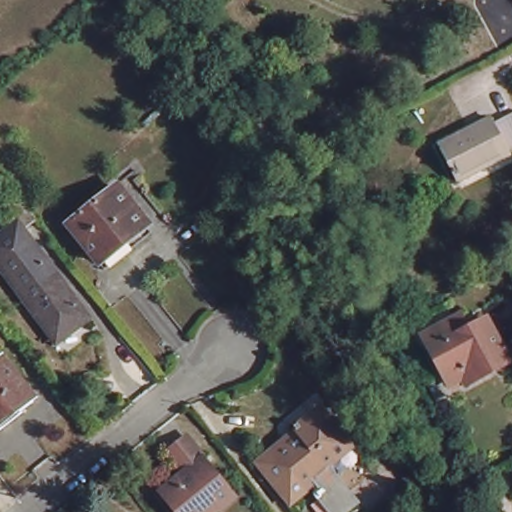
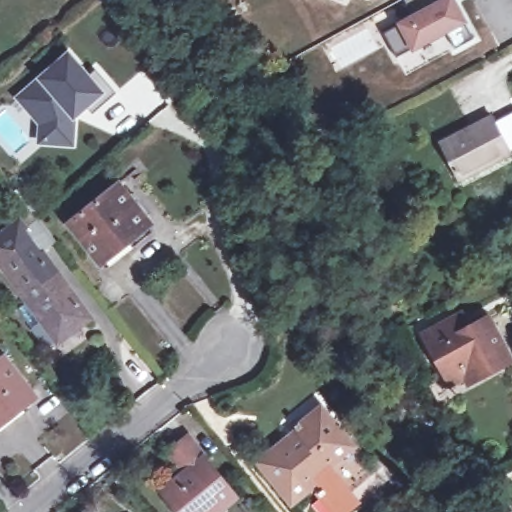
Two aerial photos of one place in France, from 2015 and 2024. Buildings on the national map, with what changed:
new [(404,0),(453,0),(474,40),(455,50),(446,32),(396,59),(383,34),(413,17),(404,0)]
new [(446,32),(455,50),(406,76),(396,59),(446,32)]
new [(65,56),(85,77),(93,71),(115,95),(90,116),(83,107),(71,118),(70,146),(38,144),(35,144),(35,127),(13,103),(25,92),(65,56)]
unchanged [(511,162),(461,188),(441,150),(492,122),(495,129),(512,120),(512,157),(510,159),(511,162)]
unchanged [(119,182),(156,229),(110,267),(72,221),(119,182)]
unchanged [(6,200),(18,191),(42,220),(30,231),(94,320),(62,343),(12,275),(0,257),(0,241),(23,224),(6,200)]
unchanged [(458,392),(454,385),(440,358),(432,345),(465,327),(474,322),(482,336),(498,327),(512,353),(512,375),(483,390),(476,393),(472,385),(458,392)]
unchanged [(0,433),(0,357),(2,360),(31,398),(18,409),(22,415),(0,433)]
unchanged [(305,422),(308,426),(325,412),(373,475),(350,493),(358,503),(347,512),(332,512),(318,495),(323,491),(317,483),(291,503),(260,465),(287,442),(299,433),(296,429),(305,422)]
unchanged [(233,496),(213,512),(179,512),(162,492),(185,473),(170,453),(175,450),(187,439),(233,496)]

